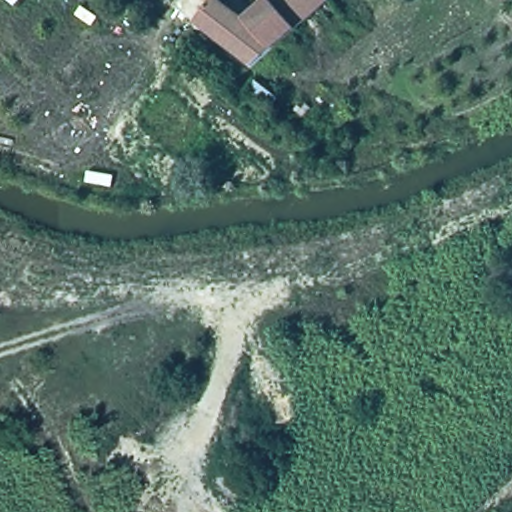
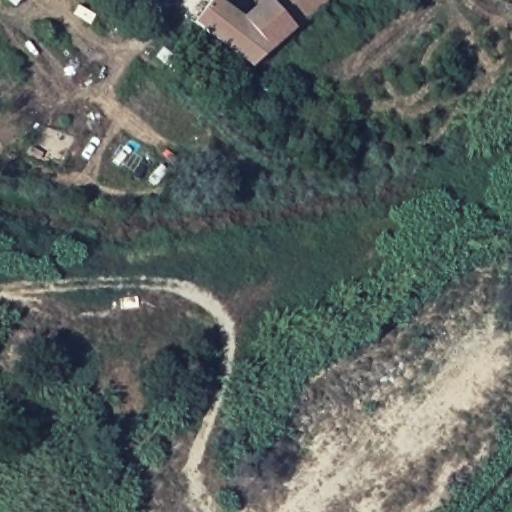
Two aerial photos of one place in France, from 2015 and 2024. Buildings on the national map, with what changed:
unchanged [(238,21),(265,0),(322,0),(325,4),(248,67),(194,26),(213,2),(238,21)]

